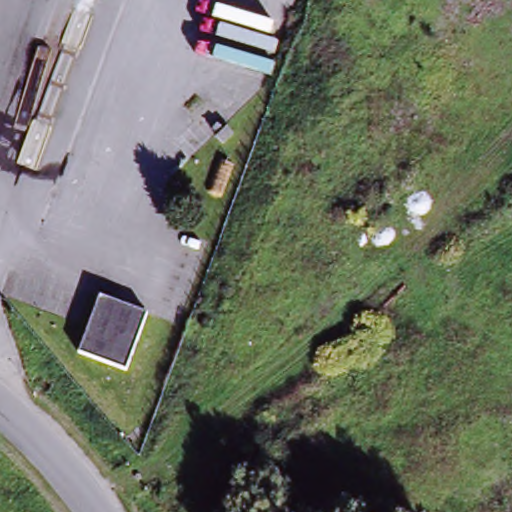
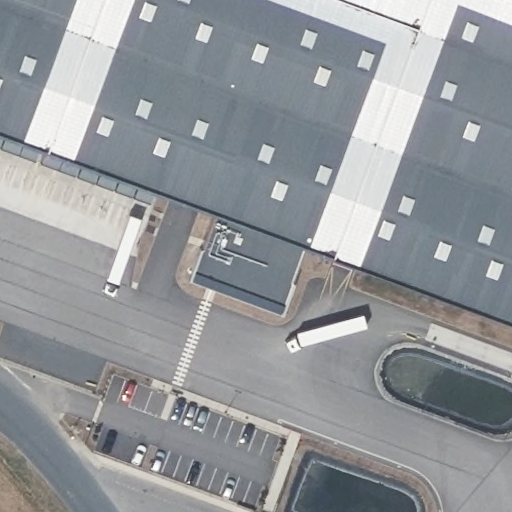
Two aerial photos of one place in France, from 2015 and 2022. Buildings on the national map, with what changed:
new [(289,234),(278,310),(185,275),(195,200),(0,128),(0,0),(512,0),(512,317),(289,234)]
demolished [(140,314),(119,370),(72,353),(93,296),(140,314)]

